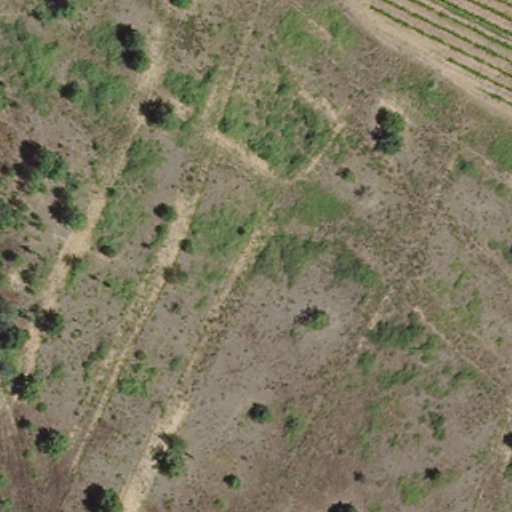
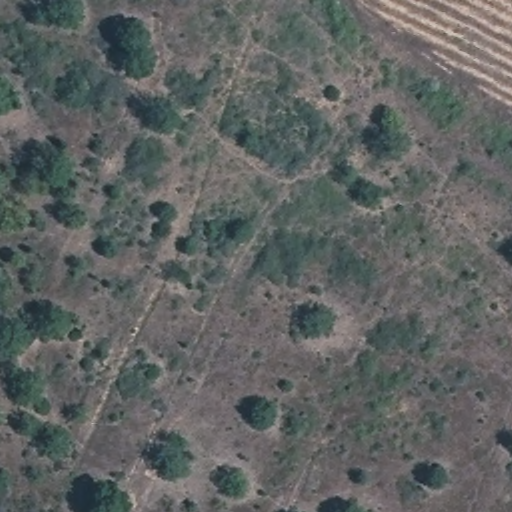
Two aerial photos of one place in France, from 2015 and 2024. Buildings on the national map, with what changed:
[]

